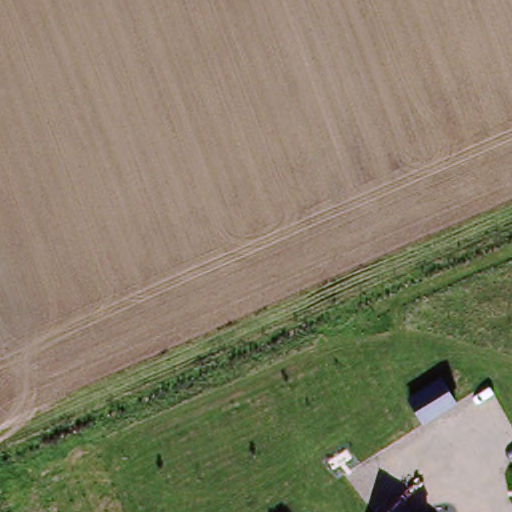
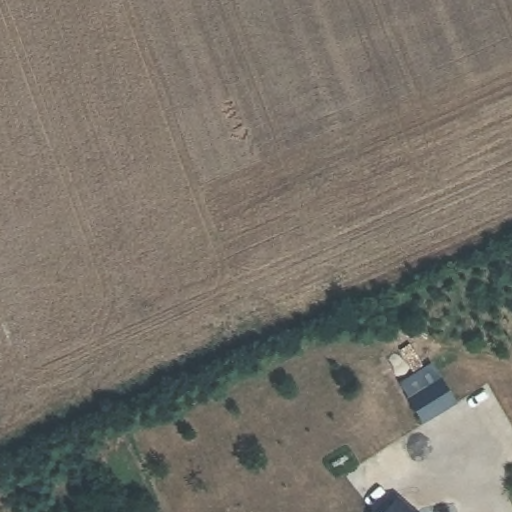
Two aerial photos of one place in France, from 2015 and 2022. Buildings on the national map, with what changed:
unchanged [(414,512),(385,512),(398,497),(414,512)]

